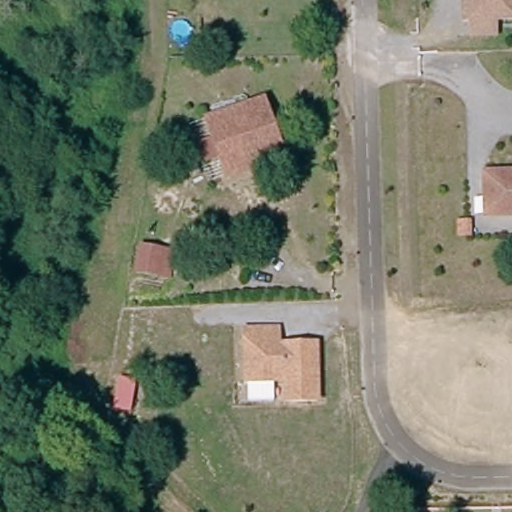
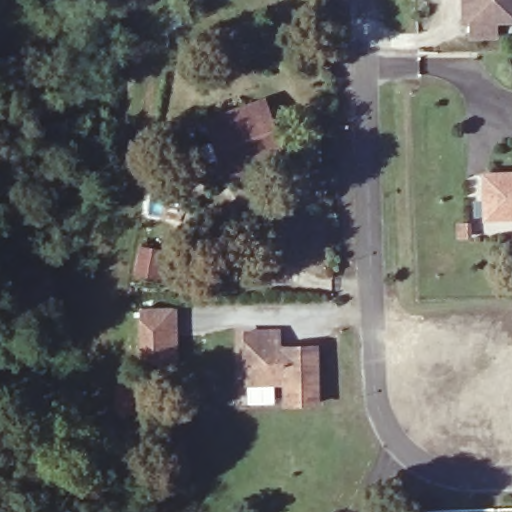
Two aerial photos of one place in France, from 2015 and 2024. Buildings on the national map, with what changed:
unchanged [(470,0),(512,0),(512,22),(501,22),(500,37),(475,37),(475,22),(470,22),(470,5),(470,0)]
unchanged [(219,159),(204,165),(194,145),(212,137),(205,118),(265,97),(288,162),(226,182),(219,159)]
unchanged [(492,175),(512,176),(512,219),(504,219),(491,219),(491,199),(492,175)]
unchanged [(140,246),(175,252),(170,281),(135,274),(140,246)]
new [(140,362),(137,310),(175,308),(177,360),(140,362)]
unchanged [(285,336),(285,352),(322,352),(322,408),(290,408),(290,387),(252,386),(252,335),(285,336)]

